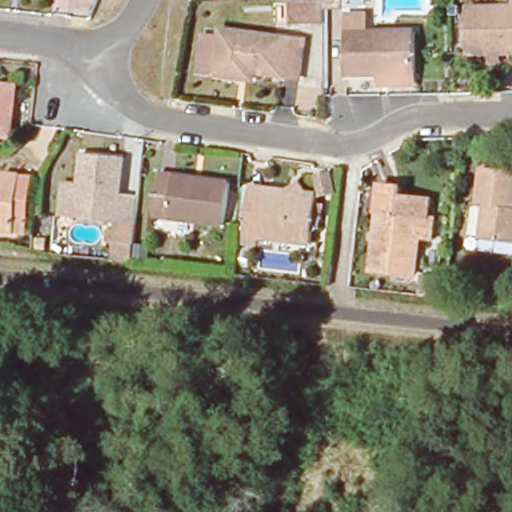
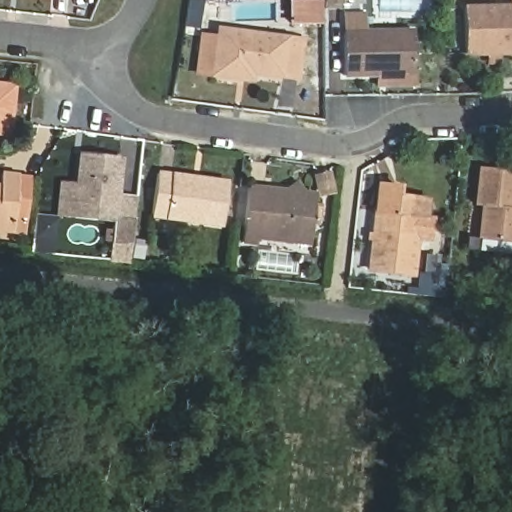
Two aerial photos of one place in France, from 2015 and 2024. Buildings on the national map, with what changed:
unchanged [(318,0),(324,0),(324,23),(318,23),(292,24),(292,0),(318,0)]
unchanged [(359,7),(325,7),(325,0),(359,0),(359,7)]
unchanged [(502,58),(488,58),(467,59),(466,12),(511,11),(511,0),(512,0),(512,58),(502,58)]
unchanged [(346,76),(344,15),(368,14),(369,31),(416,30),(417,76),(346,76)]
unchanged [(199,72),(204,35),(220,38),(221,30),(304,41),(300,78),(254,72),(241,71),(240,78),(215,74),(199,72)]
unchanged [(0,126),(0,85),(15,86),(11,127),(0,126)]
unchanged [(122,191),(119,224),(65,218),(68,185),(77,185),(81,155),(126,160),(122,191)]
unchanged [(475,242),(483,170),(512,173),(512,244),(475,242)]
unchanged [(154,216),(159,172),(230,182),(224,225),(154,216)]
unchanged [(3,177),(31,180),(26,229),(14,228),(14,233),(0,232),(0,190),(1,190),(3,177)]
unchanged [(317,183),(331,180),(335,195),(321,199),(317,183)]
unchanged [(250,191),(287,195),(300,184),(312,198),(318,199),(312,248),(245,240),(250,191)]
unchanged [(381,185),(400,187),(399,196),(432,200),(430,217),(420,216),(415,274),(372,269),(381,185)]
unchanged [(122,191),(138,193),(130,265),(110,262),(119,224),(122,191)]
unchanged [(475,252),(475,242),(512,244),(512,253),(475,252)]

